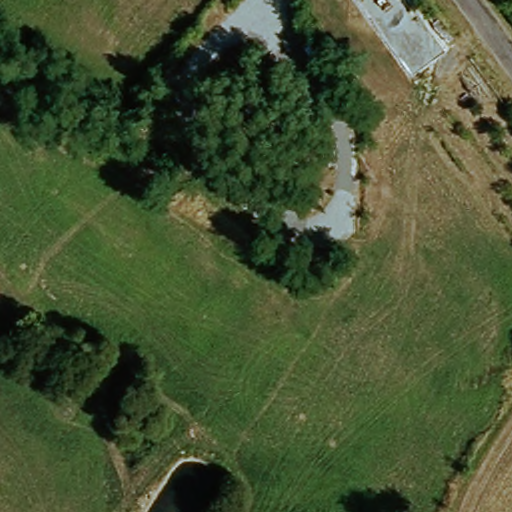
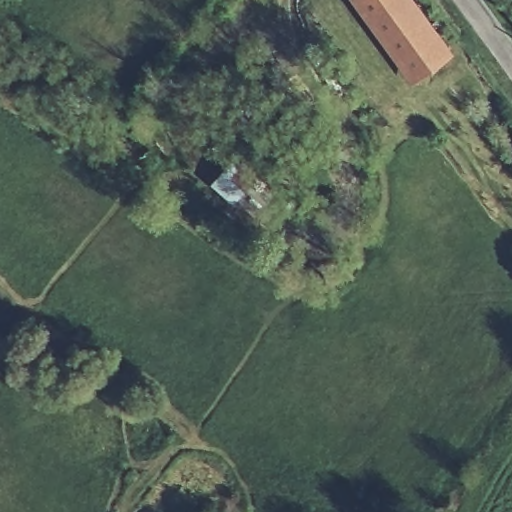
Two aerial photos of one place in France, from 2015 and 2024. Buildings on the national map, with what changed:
new [(410,86),(347,0),(412,0),(452,55),(410,86)]

